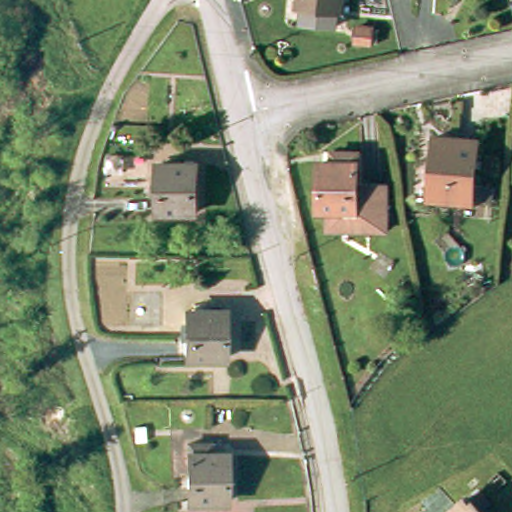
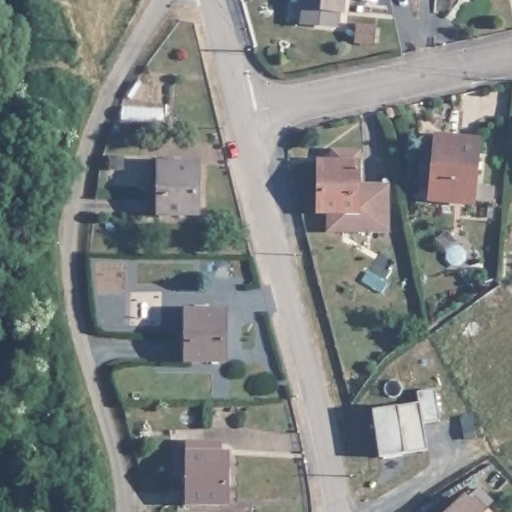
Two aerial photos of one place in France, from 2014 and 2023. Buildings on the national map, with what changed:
unchanged [(341,0),(340,13),(300,9),(300,0),(341,0)]
unchanged [(435,134),(477,140),(469,188),(480,190),(477,205),(425,198),(435,134)]
unchanged [(330,212),(324,211),(325,165),(338,165),(339,154),(362,154),(361,186),(390,187),(389,231),(330,230),(330,212)]
unchanged [(165,167),(200,167),(197,214),(163,213),(165,167)]
unchanged [(189,315),(227,316),(225,363),(187,361),(189,315)]
new [(436,387),(440,419),(424,421),(427,449),(405,452),(380,456),(373,408),(397,404),(420,401),(417,390),(436,387)]
unchanged [(190,508),(188,448),(212,447),(212,459),(226,460),(225,508),(190,508)]
unchanged [(463,506),(468,512),(457,512),(463,506)]

